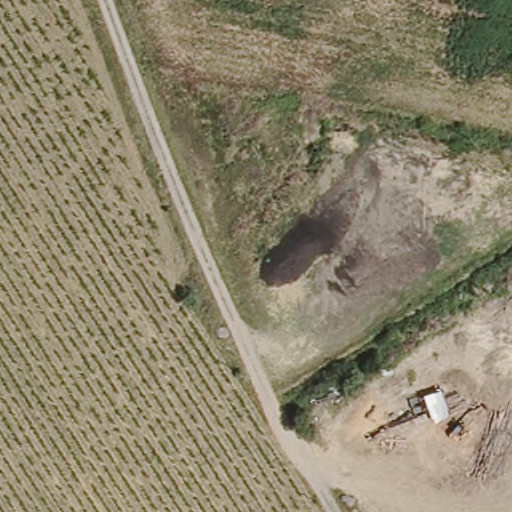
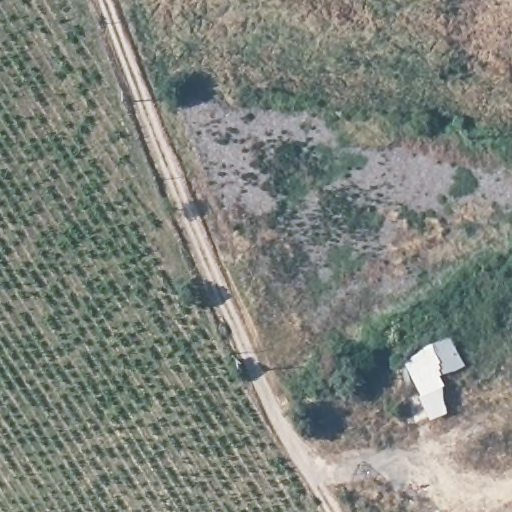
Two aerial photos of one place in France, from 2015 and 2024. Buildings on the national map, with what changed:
new [(467,368),(442,376),(445,385),(449,415),(434,423),(419,384),(413,387),(403,366),(429,348),(451,336),(467,368)]

